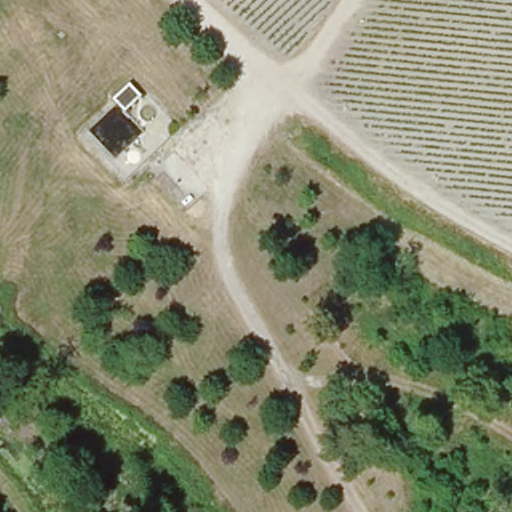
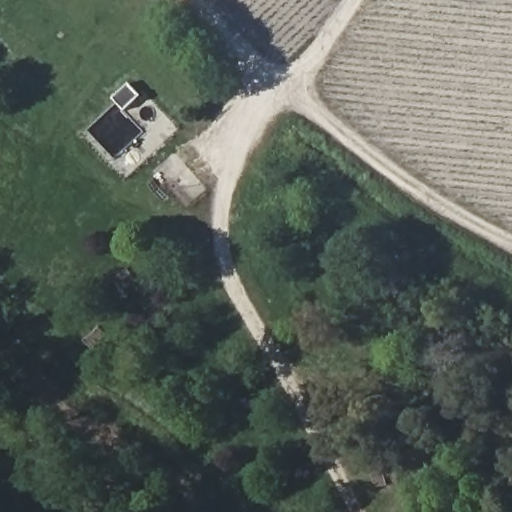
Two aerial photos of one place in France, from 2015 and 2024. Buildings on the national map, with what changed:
unchanged [(113,98),(129,83),(141,97),(125,111),(113,98)]

